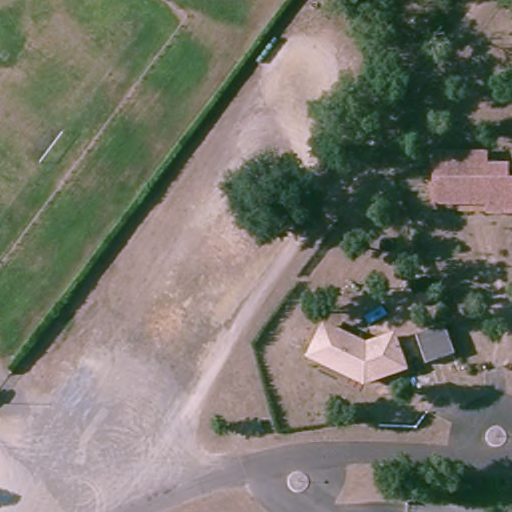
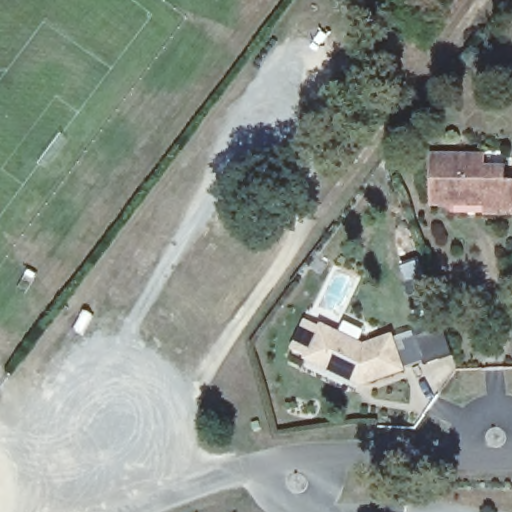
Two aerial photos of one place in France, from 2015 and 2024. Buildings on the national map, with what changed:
unchanged [(431,199),(434,152),(466,154),(466,155),(483,156),(483,166),(504,167),(503,185),(512,186),(511,215),(484,212),(484,202),(451,200),(431,199)]
unchanged [(322,327),(363,349),(390,340),(400,372),(359,386),(306,358),(322,327)]
unchanged [(467,341),(476,370),(448,378),(439,350),(467,341)]

